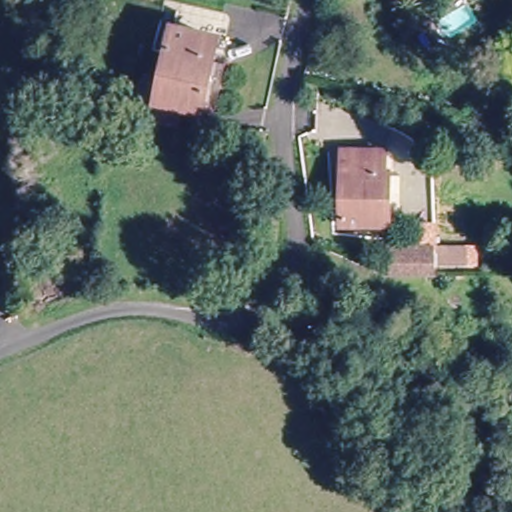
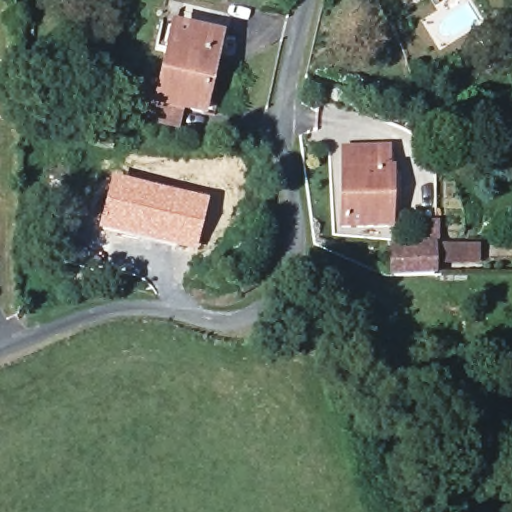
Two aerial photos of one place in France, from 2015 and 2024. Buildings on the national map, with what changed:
unchanged [(162,108),(170,61),(153,58),(159,26),(167,28),(164,44),(173,46),(178,18),(220,26),(204,116),(162,108)]
unchanged [(115,86),(103,84),(106,69),(118,71),(115,86)]
unchanged [(336,150),(381,150),(379,240),(334,239),(336,150)]
new [(110,178),(208,202),(195,253),(96,230),(110,178)]
unchanged [(433,246),(434,277),(396,279),(396,247),(433,246)]

